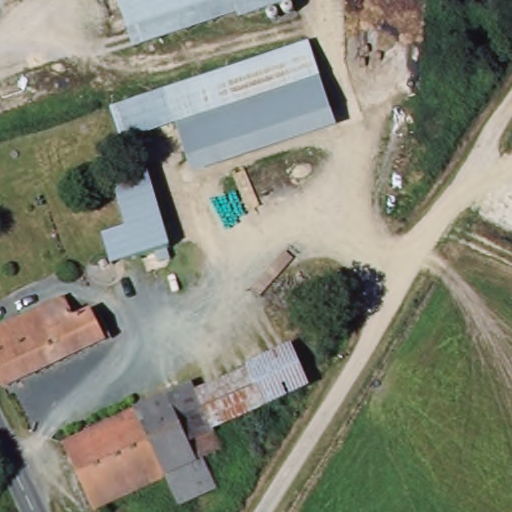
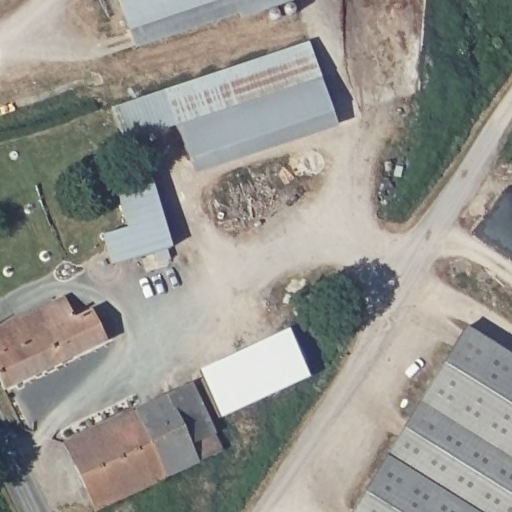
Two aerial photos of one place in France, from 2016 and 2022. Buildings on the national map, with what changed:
unchanged [(282,0),(140,48),(124,0),(282,0)]
unchanged [(313,43),(324,74),(336,112),(195,159),(182,122),(127,140),(117,109),(313,43)]
unchanged [(170,250),(139,255),(115,188),(153,177),(170,250)]
unchanged [(10,391),(0,370),(0,332),(70,298),(80,319),(96,311),(111,342),(10,391)]
new [(512,512),(352,512),(467,327),(512,354),(512,512)]
unchanged [(313,386),(246,417),(218,431),(199,389),(295,344),(313,386)]
unchanged [(227,451),(101,511),(70,444),(197,384),(199,389),(218,431),(227,451)]
unchanged [(181,509),(169,479),(205,462),(217,489),(181,509)]

